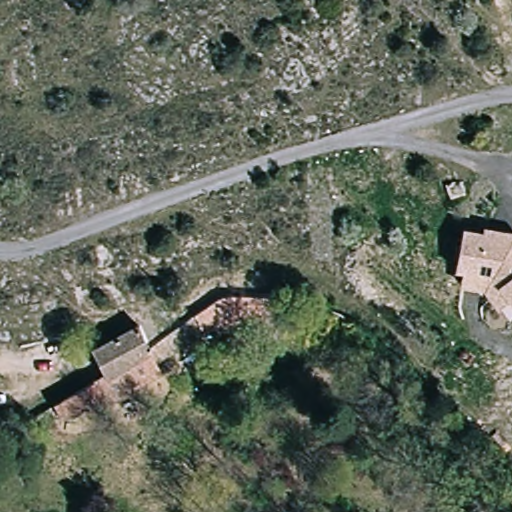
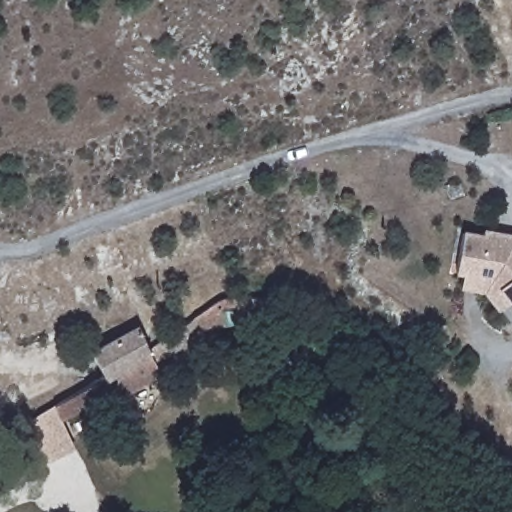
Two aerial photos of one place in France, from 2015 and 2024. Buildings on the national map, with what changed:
unchanged [(509,303),(497,311),(481,291),(454,288),(463,230),(481,233),(483,228),(512,234),(512,308),(509,303)]
unchanged [(140,326),(151,350),(225,300),(278,302),(161,371),(156,357),(110,382),(93,351),(140,326)]
unchanged [(108,401),(65,425),(54,404),(98,381),(108,401)]

